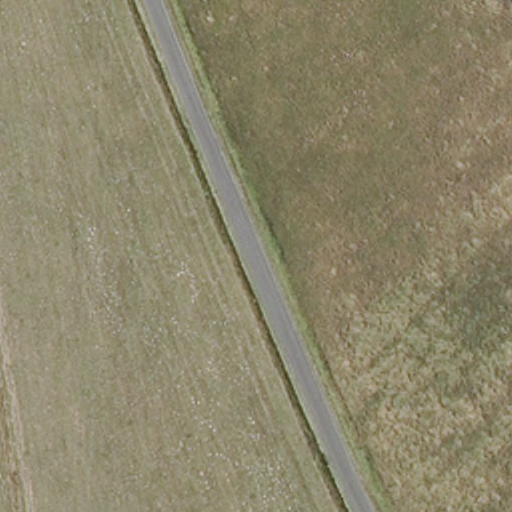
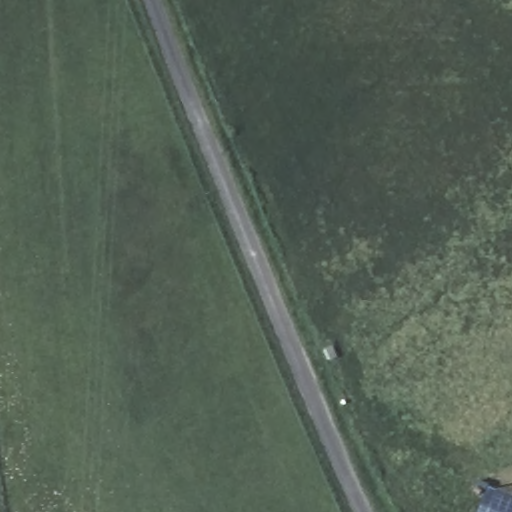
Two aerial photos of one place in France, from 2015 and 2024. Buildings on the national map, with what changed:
new [(486,483),(512,494),(512,512),(475,512),(486,483)]

